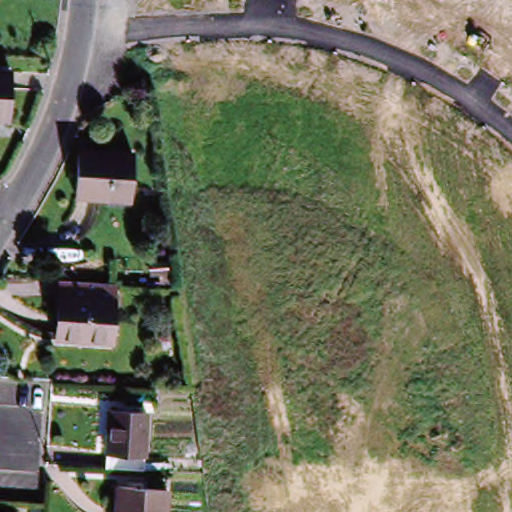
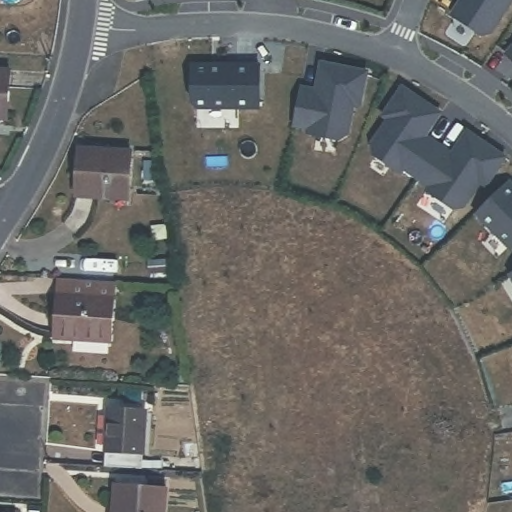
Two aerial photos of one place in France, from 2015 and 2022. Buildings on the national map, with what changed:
new [(461,0),(511,0),(490,32),(481,34),(451,15),(461,0)]
new [(512,47),(512,60),(505,53),(512,47)]
new [(300,87),(315,90),(320,63),(366,72),(359,106),(353,105),(347,134),(338,140),(306,134),(307,129),(292,126),(300,87)]
new [(191,64),(259,64),(259,107),(196,107),(191,102),(191,64)]
unchanged [(0,117),(0,68),(5,68),(4,117),(0,117)]
new [(387,119),(381,115),(401,87),(440,113),(425,135),(437,144),(415,177),(402,168),(399,172),(372,154),(370,143),(387,119)]
new [(437,144),(450,153),(466,131),(504,157),(485,186),(479,182),(462,206),(452,208),(425,190),(428,186),(415,177),(437,144)]
unchanged [(121,200),(67,193),(73,143),(127,149),(121,200)]
new [(512,184),(512,247),(510,249),(475,213),(508,180),(512,184)]
new [(512,271),(512,279),(508,273),(512,271)]
unchanged [(113,346),(54,340),(59,280),(119,286),(113,346)]
unchanged [(148,461),(114,458),(116,405),(151,406),(148,461)]
unchanged [(162,486),(161,512),(110,512),(111,483),(162,486)]

